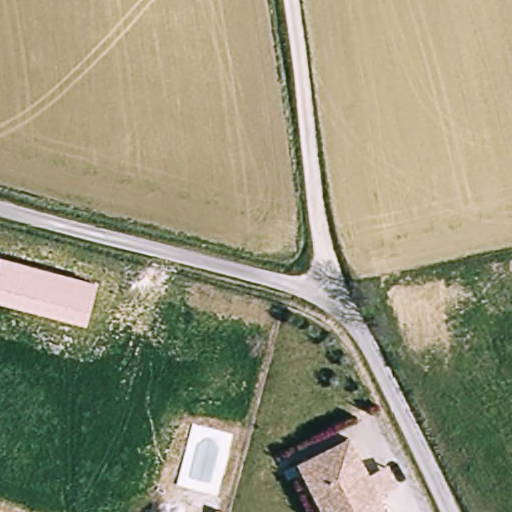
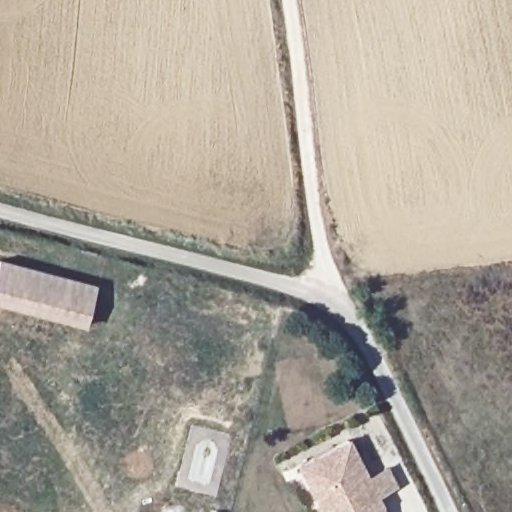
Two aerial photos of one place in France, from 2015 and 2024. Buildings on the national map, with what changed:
unchanged [(85,327),(0,302),(0,261),(0,260),(95,285),(85,327)]
unchanged [(351,435),(389,505),(391,512),(323,512),(298,463),(351,435)]

